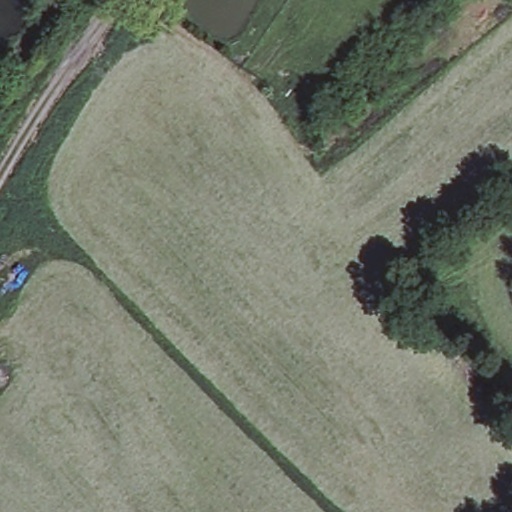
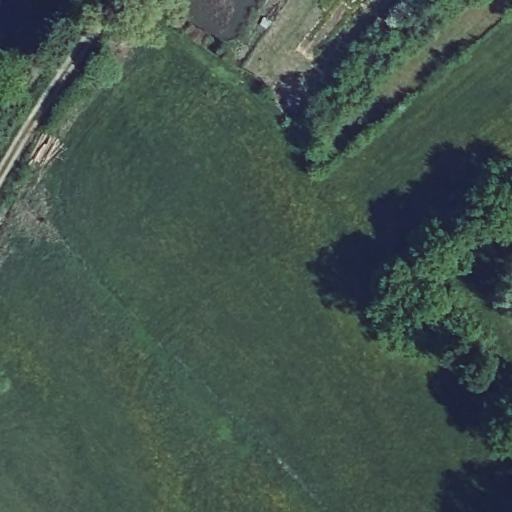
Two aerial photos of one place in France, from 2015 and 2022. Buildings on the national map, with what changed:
unchanged [(286,111),(310,81),(326,96),(300,124),(286,111)]

